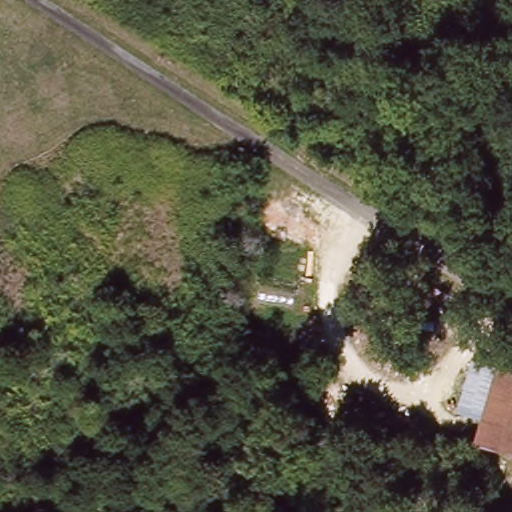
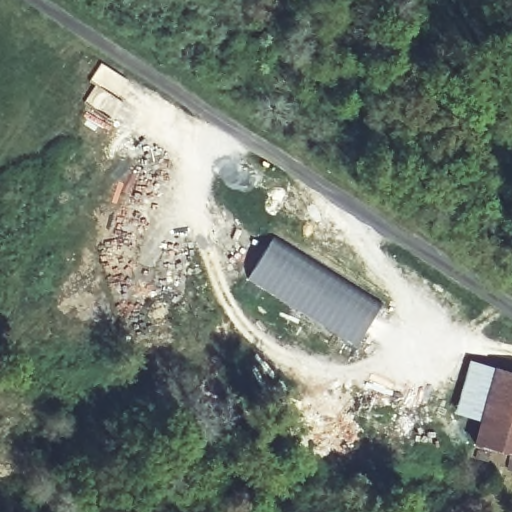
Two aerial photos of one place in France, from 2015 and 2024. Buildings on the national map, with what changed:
new [(275,236),(383,303),(357,345),(249,277),(275,236)]
unchanged [(509,450),(472,442),(497,364),(512,368),(512,450),(509,450)]

